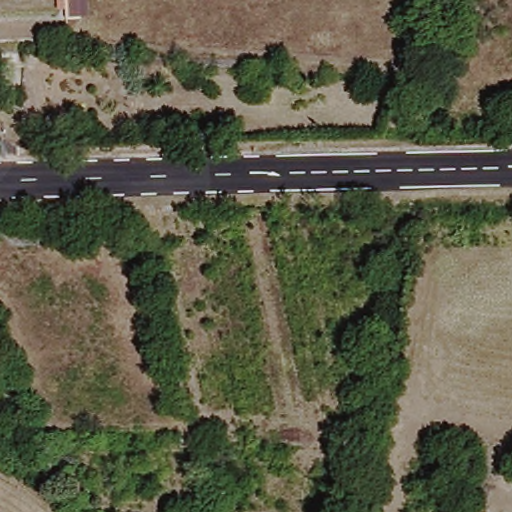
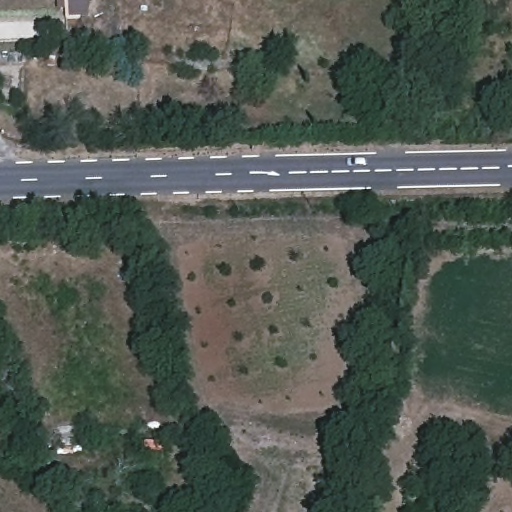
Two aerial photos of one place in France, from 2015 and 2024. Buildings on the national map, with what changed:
unchanged [(67,21),(65,14),(56,14),(56,0),(86,0),(87,21),(67,21)]

